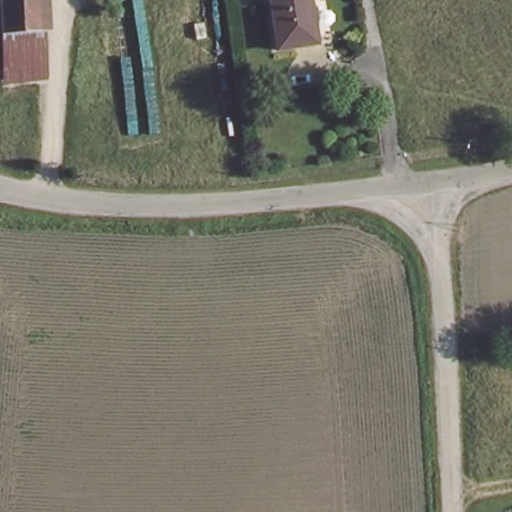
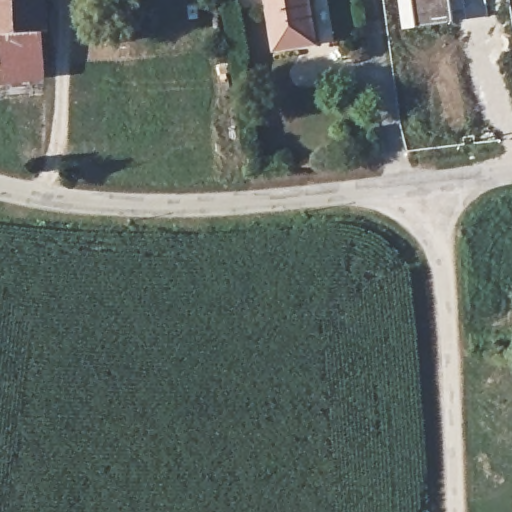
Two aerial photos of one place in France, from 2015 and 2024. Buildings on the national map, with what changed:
unchanged [(3,39),(1,0),(38,0),(39,37),(3,39)]
unchanged [(274,42),(268,0),(312,0),(317,37),(274,42)]
new [(401,30),(397,0),(453,0),(457,24),(401,30)]
unchanged [(41,70),(5,72),(3,39),(39,37),(41,70)]

